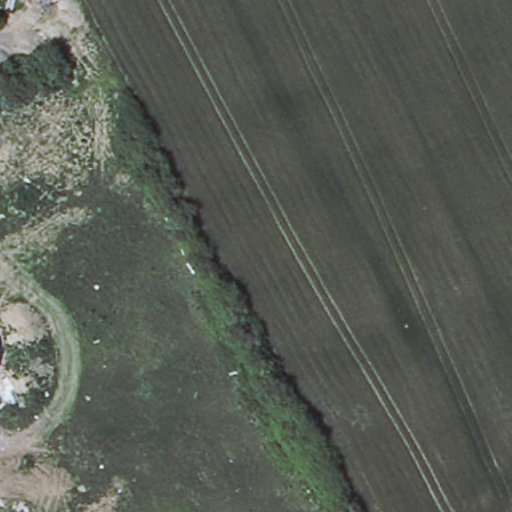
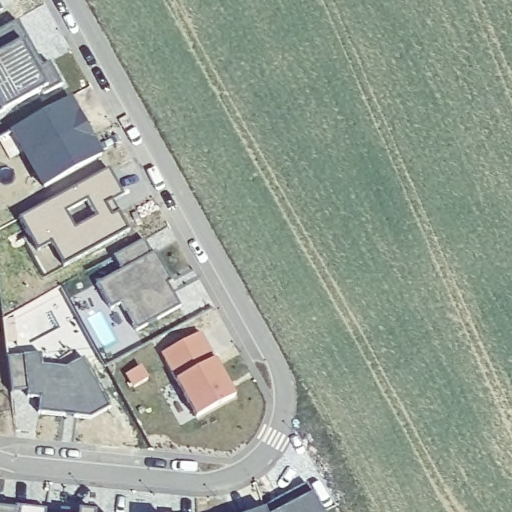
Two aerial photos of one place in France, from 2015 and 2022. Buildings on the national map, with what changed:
new [(2,9),(0,10),(0,5),(2,9)]
new [(16,22),(40,67),(48,64),(61,85),(44,94),(40,89),(0,113),(0,31),(16,22)]
new [(69,100),(99,155),(44,186),(24,151),(9,159),(0,144),(0,137),(69,100)]
new [(109,167),(123,193),(112,199),(128,225),(64,262),(50,241),(37,247),(20,217),(109,167)]
new [(149,255),(153,253),(171,283),(168,285),(178,308),(134,332),(119,305),(108,310),(95,286),(120,272),(112,257),(142,241),(149,255)]
new [(201,333),(234,397),(194,417),(161,355),(201,333)]
new [(110,408),(90,420),(37,413),(38,398),(27,398),(26,391),(11,393),(6,357),(39,354),(40,366),(66,368),(83,358),(110,408)]
new [(321,512),(279,512),(311,495),(321,512)]
new [(44,511),(44,512),(19,512),(19,508),(44,511)]
new [(0,512),(0,510),(19,512),(0,512)]
new [(59,512),(59,510),(72,512),(59,512)]
new [(263,512),(255,512),(263,510),(263,512)]

